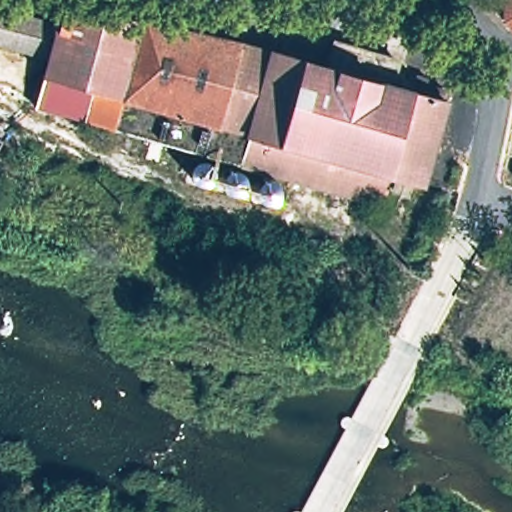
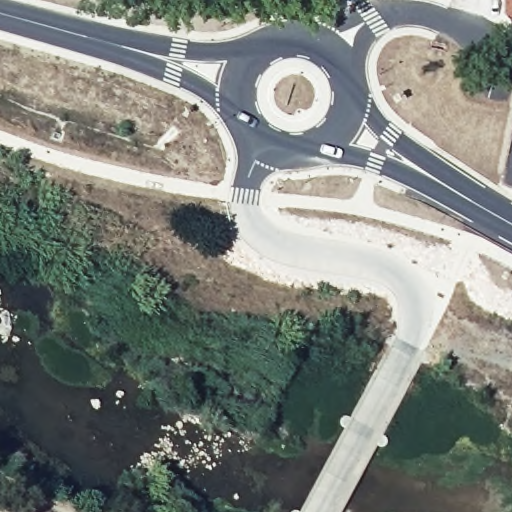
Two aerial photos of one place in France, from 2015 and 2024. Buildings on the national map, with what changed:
demolished [(498,24),(498,0),(512,0),(512,24),(498,24)]
new [(507,31),(500,24),(501,0),(512,0),(512,31),(507,31)]
demolished [(58,1),(320,58),(327,34),(392,49),(387,73),(437,90),(421,182),(394,174),(388,202),(34,105),(44,51),(0,43),(0,6),(55,16),(58,1)]

